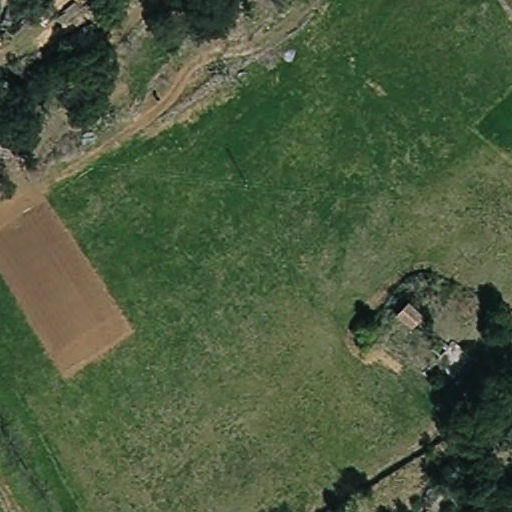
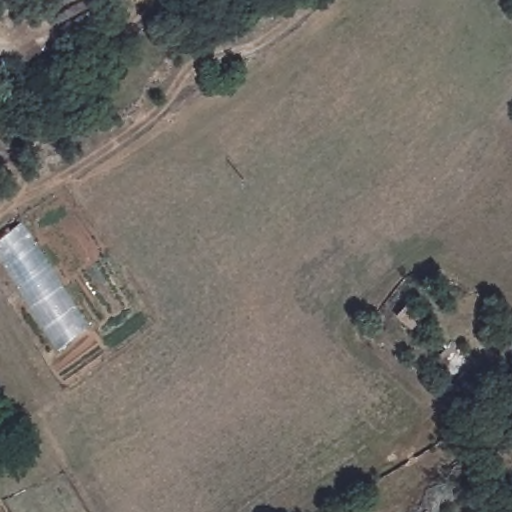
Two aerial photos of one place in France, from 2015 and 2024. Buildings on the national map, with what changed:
new [(56,351),(0,261),(0,238),(23,221),(90,327),(56,351)]
unchanged [(409,303),(422,315),(413,325),(399,313),(409,303)]

